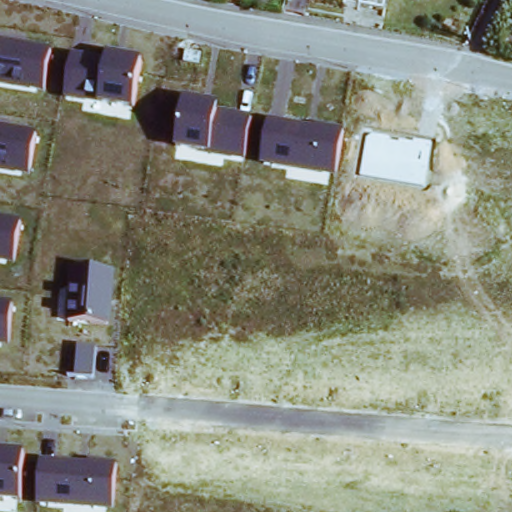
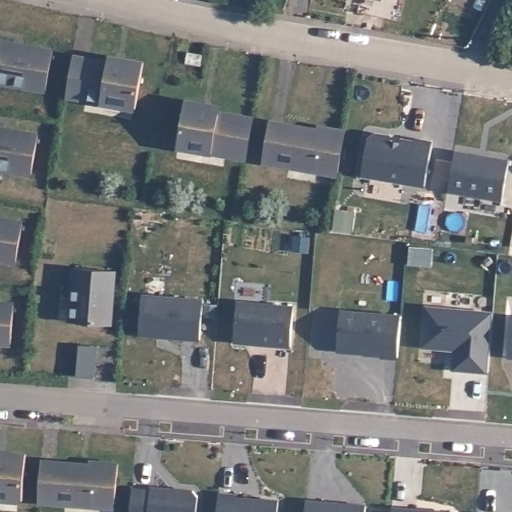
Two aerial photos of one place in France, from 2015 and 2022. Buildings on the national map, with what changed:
unchanged [(0,40),(52,49),(45,94),(0,86),(0,40)]
unchanged [(71,53),(105,59),(107,56),(142,60),(133,110),(64,100),(71,53)]
unchanged [(183,99),(218,104),(217,112),(252,117),(245,161),(175,150),(183,99)]
unchanged [(267,118),(342,131),(335,177),(259,164),(267,118)]
unchanged [(30,177),(0,173),(0,129),(37,135),(30,177)]
new [(416,141),(417,137),(433,140),(425,187),(361,177),(367,139),(376,133),(416,141)]
new [(454,152),(508,161),(502,200),(447,191),(454,152)]
unchanged [(0,219),(22,224),(16,266),(0,262),(0,219)]
unchanged [(65,323),(70,265),(116,270),(112,326),(65,323)]
new [(142,296),(203,301),(200,340),(139,336),(142,296)]
new [(233,343),(237,302),(293,307),(290,347),(233,343)]
unchanged [(0,304),(13,306),(10,349),(0,348),(0,304)]
new [(493,313),(488,373),(453,370),(455,348),(446,347),(445,350),(422,347),(425,307),(493,313)]
new [(340,311),(401,316),(397,358),(380,357),(380,355),(364,353),(364,352),(354,352),(354,353),(337,352),(340,311)]
new [(512,317),(512,357),(508,357),(512,317)]
new [(79,345),(97,346),(94,377),(77,376),(79,345)]
unchanged [(20,503),(0,502),(0,450),(25,452),(20,503)]
unchanged [(40,457),(117,463),(113,510),(36,503),(40,457)]
new [(150,491),(150,488),(170,490),(170,492),(179,492),(179,491),(192,492),(197,497),(196,512),(130,512),(132,490),(150,491)]
new [(217,512),(218,495),(235,496),(235,498),(278,502),(278,512),(217,512)]
new [(340,503),(340,506),(349,507),(350,505),(365,506),(365,512),(305,512),(305,501),(340,503)]
new [(432,512),(391,512),(392,508),(432,512)]

